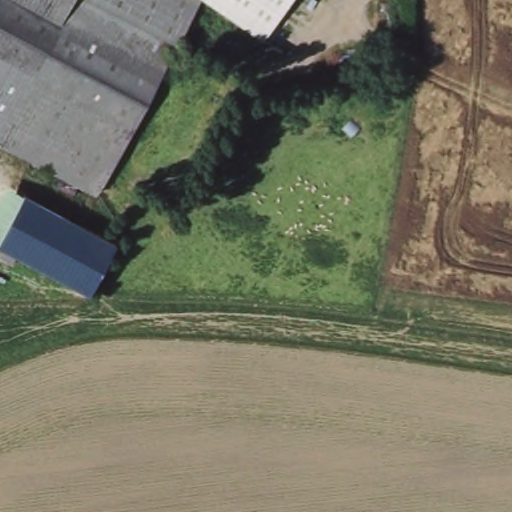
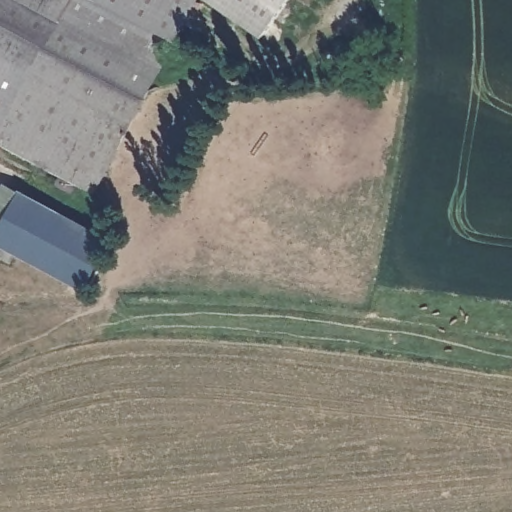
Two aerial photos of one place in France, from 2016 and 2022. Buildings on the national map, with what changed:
unchanged [(0,131),(0,0),(195,0),(202,5),(93,188),(0,131)]
unchanged [(203,6),(202,5),(195,0),(304,0),(270,51),(203,6)]
unchanged [(0,229),(24,192),(117,251),(89,295),(0,239),(0,229)]

